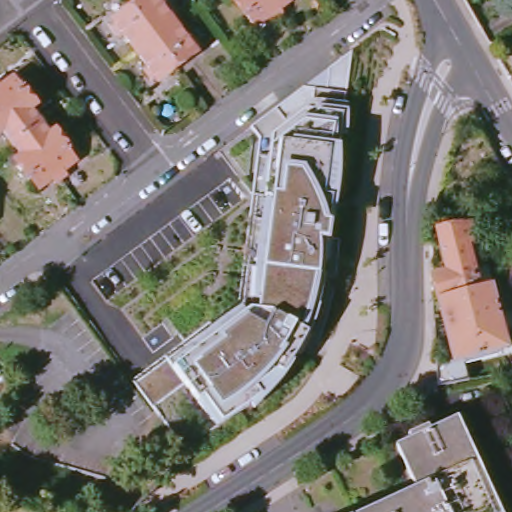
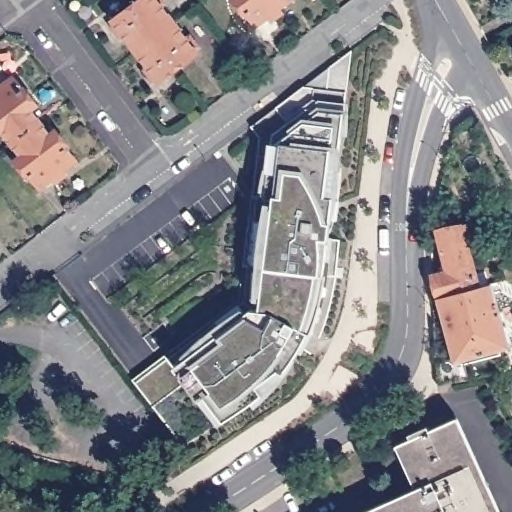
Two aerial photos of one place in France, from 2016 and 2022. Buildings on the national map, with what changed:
unchanged [(177,61),(159,74),(145,55),(132,64),(125,54),(137,45),(135,43),(111,61),(103,51),(128,34),(114,14),(133,0),(134,0),(162,0),(175,17),(196,47),(177,61)]
unchanged [(275,12),(256,26),(247,13),(246,14),(237,0),(266,0),(275,12)]
unchanged [(266,0),(293,0),(275,12),(266,0)]
unchanged [(244,281),(288,124),(355,75),(357,53),(380,36),(316,262),(328,266),(318,301),(306,297),(304,307),(301,320),(297,332),(292,344),(286,355),(280,366),(272,377),(265,387),(256,397),(252,400),(197,440),(197,441),(186,425),(162,392),(147,374),(148,373),(244,281)]
unchanged [(292,103),(331,72),(355,75),(288,124),(279,113),(282,110),(292,103)]
unchanged [(27,132),(0,96),(0,87),(14,76),(37,106),(32,110),(42,122),(27,132)]
unchanged [(27,132),(15,142),(5,130),(1,134),(0,133),(0,96),(27,132)]
unchanged [(27,132),(42,122),(51,134),(56,130),(79,159),(60,174),(27,132)]
unchanged [(27,132),(60,174),(42,187),(20,158),(25,154),(15,142),(27,132)]
unchanged [(441,298),(435,275),(449,272),(443,253),(442,233),(472,225),(475,243),(467,245),(478,289),(441,298)]
unchanged [(505,266),(512,265),(512,280),(510,281),(505,266)]
unchanged [(478,289),(492,285),(510,348),(457,362),(441,298),(478,289)]
unchanged [(408,468),(414,466),(403,440),(460,417),(499,512),(371,512),(415,486),(408,468)]

